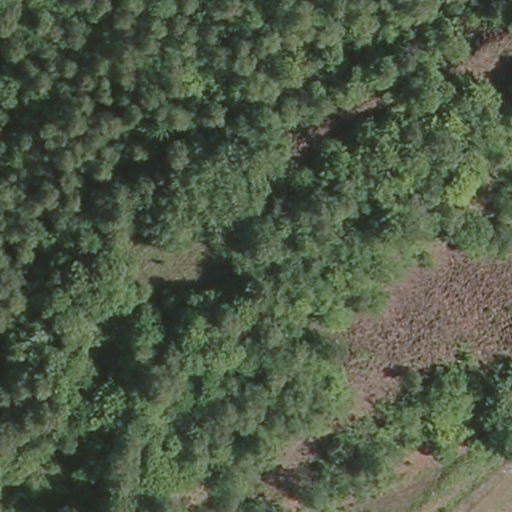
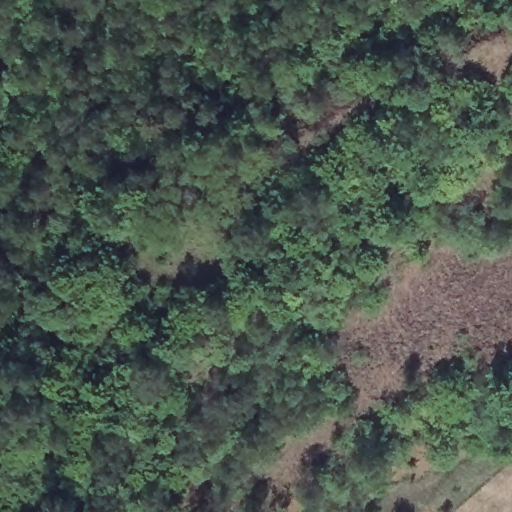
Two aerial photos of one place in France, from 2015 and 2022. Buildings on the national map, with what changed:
[]

